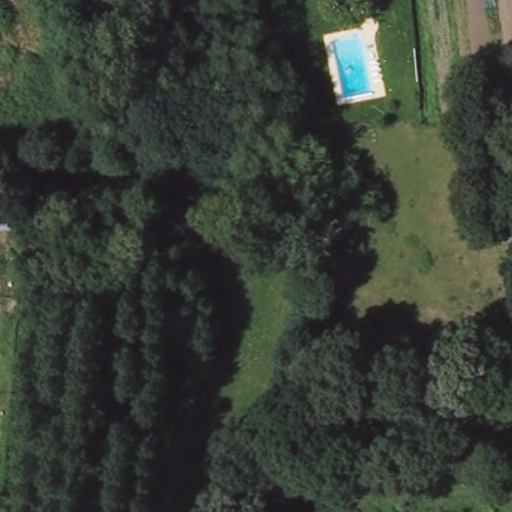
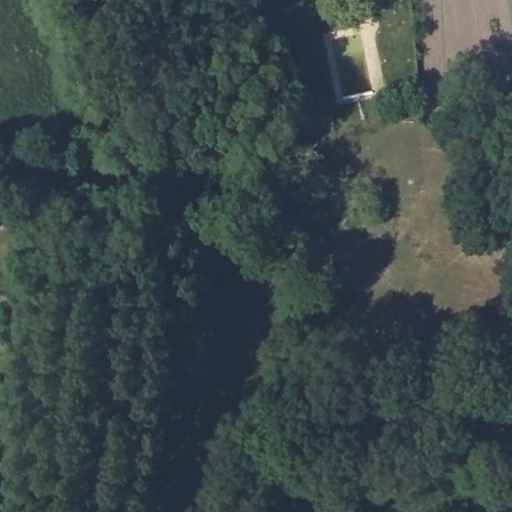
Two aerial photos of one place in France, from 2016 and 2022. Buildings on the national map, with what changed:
unchanged [(0,229),(0,190),(14,191),(13,229),(0,229)]

